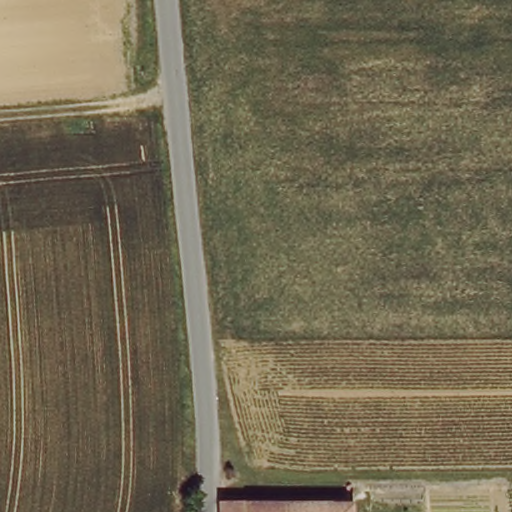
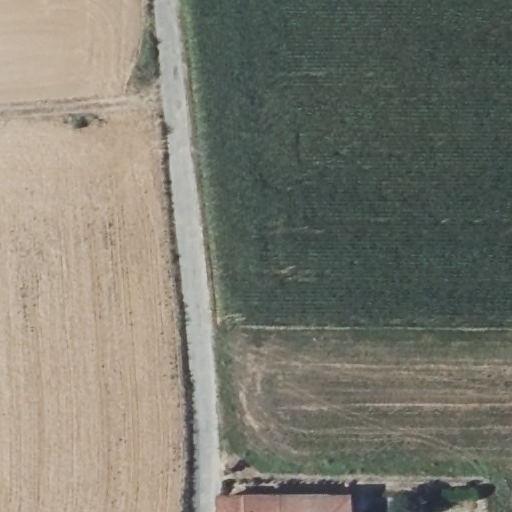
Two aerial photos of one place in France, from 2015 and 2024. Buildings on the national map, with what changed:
unchanged [(349,498),(350,512),(218,512),(218,500),(349,498)]

